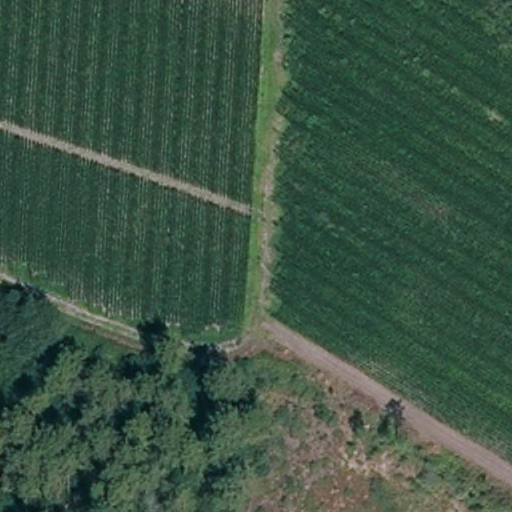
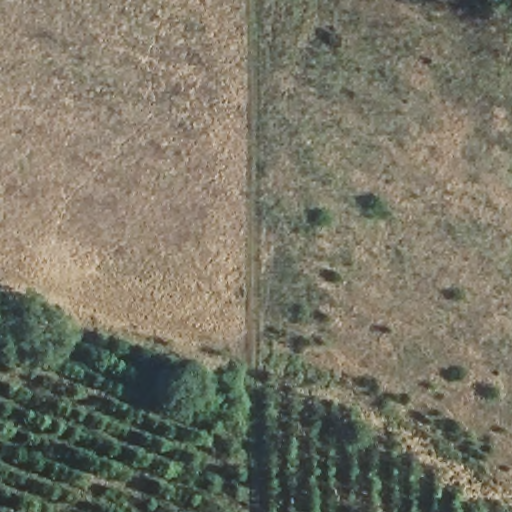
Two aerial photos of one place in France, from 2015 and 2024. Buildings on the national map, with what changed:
[]

